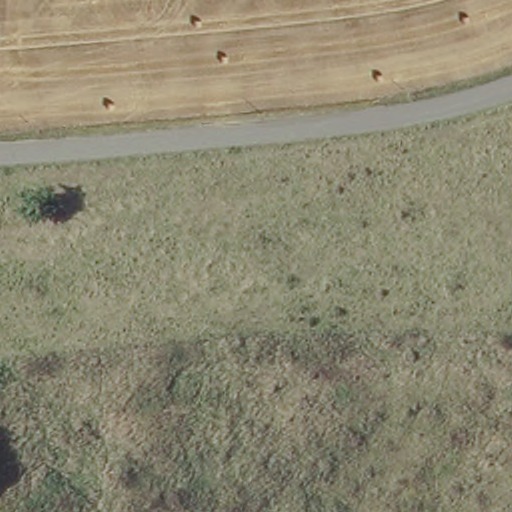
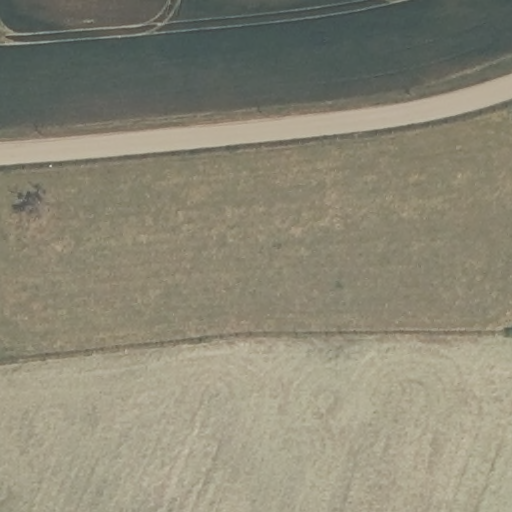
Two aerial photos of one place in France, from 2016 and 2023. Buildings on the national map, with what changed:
[]

